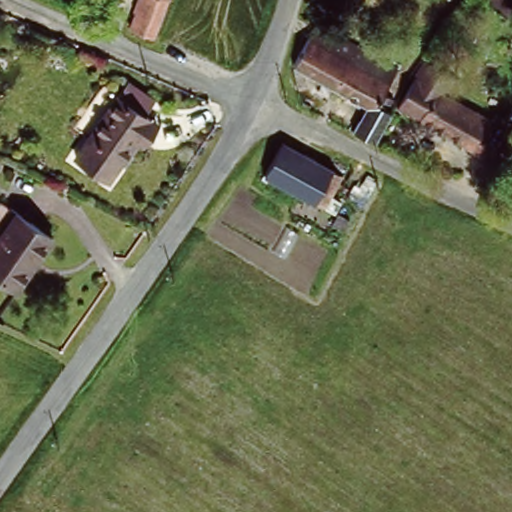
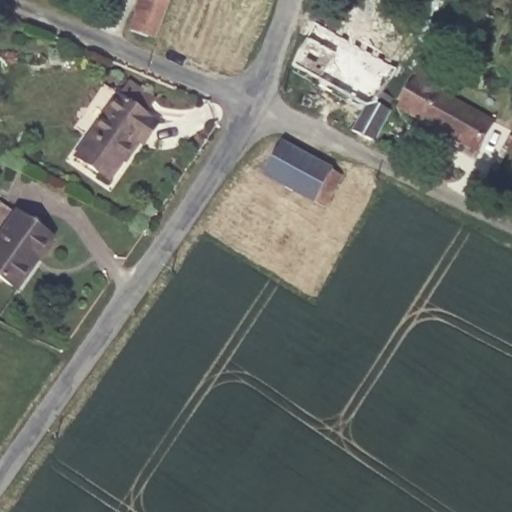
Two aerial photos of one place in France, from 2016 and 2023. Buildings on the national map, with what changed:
unchanged [(133,24),(142,0),(169,0),(157,33),(133,24)]
unchanged [(399,68),(386,92),(394,97),(389,108),(394,111),(378,139),(356,128),(368,105),(296,64),(319,23),(399,68)]
unchanged [(492,159),(479,152),(398,105),(414,77),(424,61),(444,74),(457,81),(449,94),(497,121),(494,125),(508,133),(492,159)]
unchanged [(114,97),(146,124),(99,180),(66,155),(114,97)]
unchanged [(328,191),(321,204),(259,168),(278,135),(329,161),(341,168),(328,191)]
unchanged [(8,204),(53,240),(18,283),(0,268),(0,215),(8,204)]

